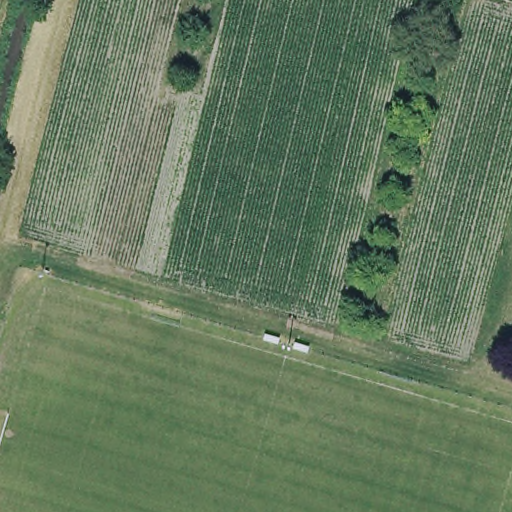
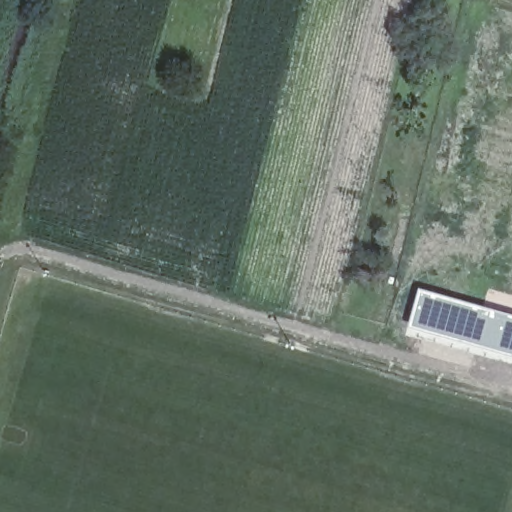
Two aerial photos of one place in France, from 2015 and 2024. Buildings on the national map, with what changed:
new [(512,314),(512,353),(410,324),(419,288),(512,314)]

